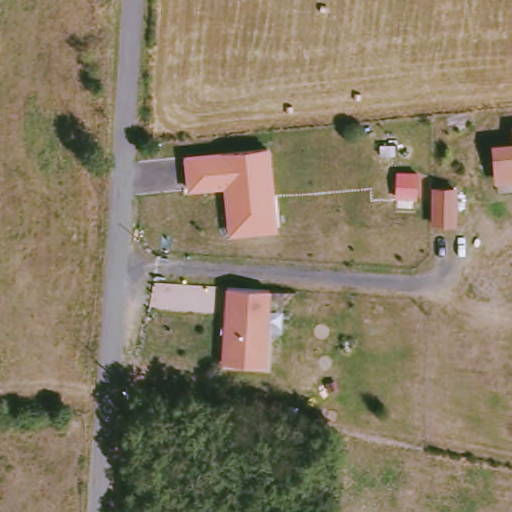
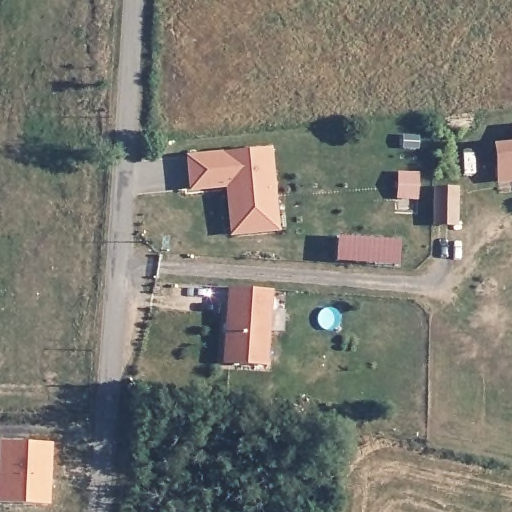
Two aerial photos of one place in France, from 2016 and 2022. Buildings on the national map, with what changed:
unchanged [(278,231),(227,236),(221,189),(186,191),(182,155),(268,147),(278,231)]
unchanged [(512,150),(512,171),(500,172),(498,151),(512,150)]
unchanged [(455,191),(454,226),(434,225),(435,190),(455,191)]
unchanged [(221,363),(226,287),(268,290),(263,366),(221,363)]
new [(0,502),(0,442),(52,443),(48,503),(0,502)]

